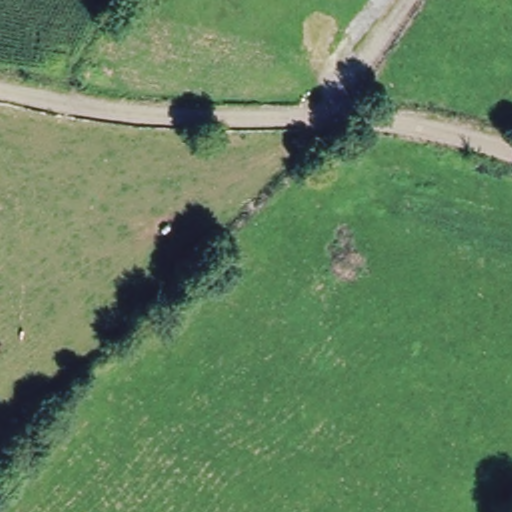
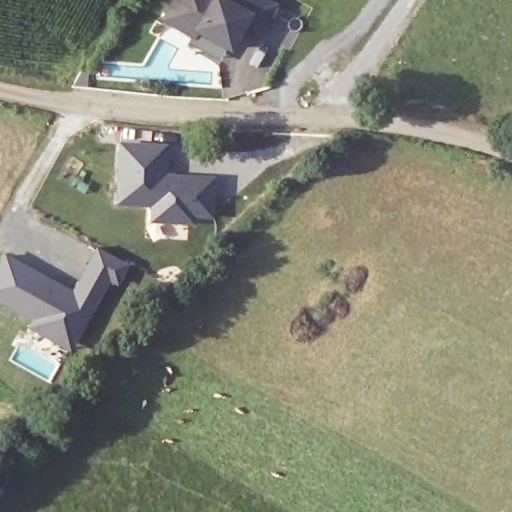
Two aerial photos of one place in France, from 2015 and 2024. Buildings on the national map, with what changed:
new [(255,23),(242,47),(209,29),(206,35),(177,19),(187,0),(238,0),(240,1),(240,0),(281,0),(287,3),(272,32),(255,23)]
new [(117,140),(171,142),(169,170),(217,174),(215,222),(200,222),(199,226),(147,223),(147,207),(114,205),(117,140)]
new [(4,252),(71,288),(97,245),(132,263),(119,287),(111,283),(71,353),(27,328),(30,321),(0,304),(0,258),(4,252)]

